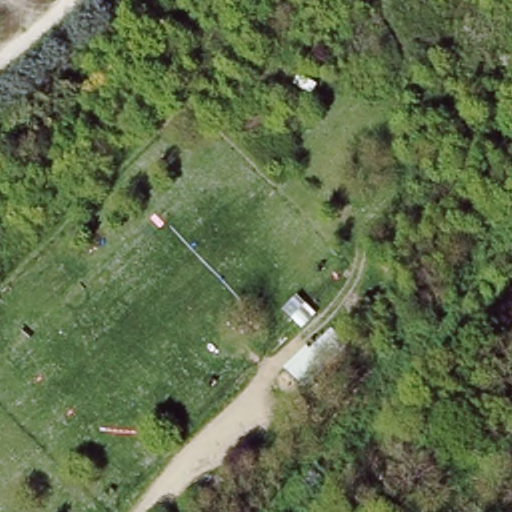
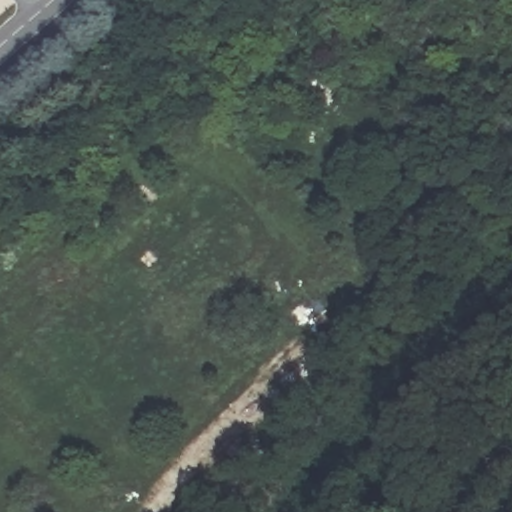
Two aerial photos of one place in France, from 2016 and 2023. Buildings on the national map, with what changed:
unchanged [(306,346),(309,349),(334,325),(353,343),(304,389),(284,369),(306,346)]

